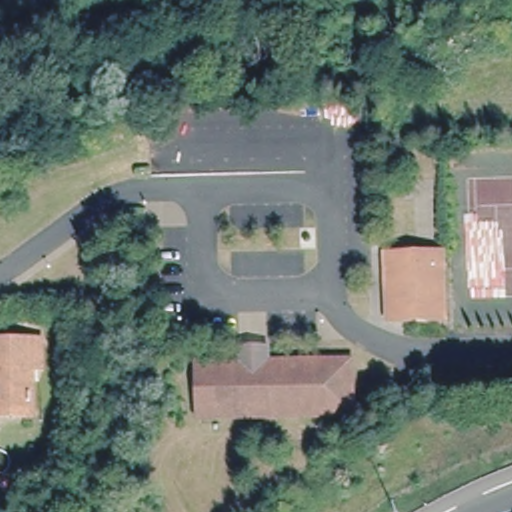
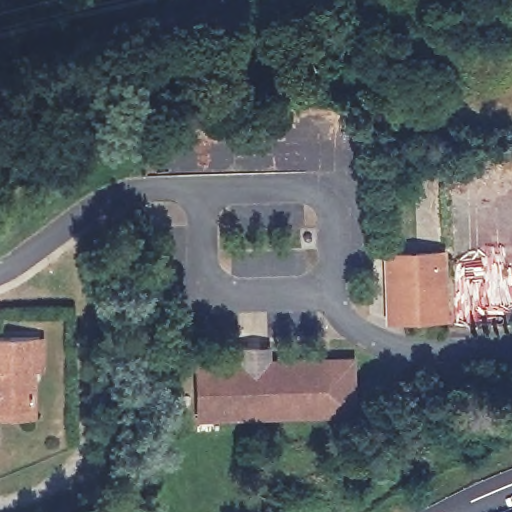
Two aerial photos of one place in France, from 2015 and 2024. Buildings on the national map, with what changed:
unchanged [(441,316),(388,317),(384,250),(438,249),(441,316)]
unchanged [(38,334),(38,364),(29,364),(29,406),(0,407),(0,334),(29,334),(38,334)]
unchanged [(249,356),(251,347),(281,347),(284,354),(346,354),(357,363),(359,398),(346,415),(307,412),(233,413),(233,418),(219,417),(217,357),(249,356)]
unchanged [(219,417),(198,417),(198,356),(217,357),(219,417)]

